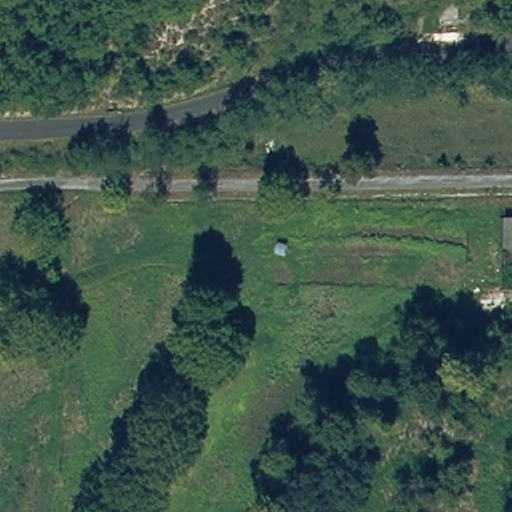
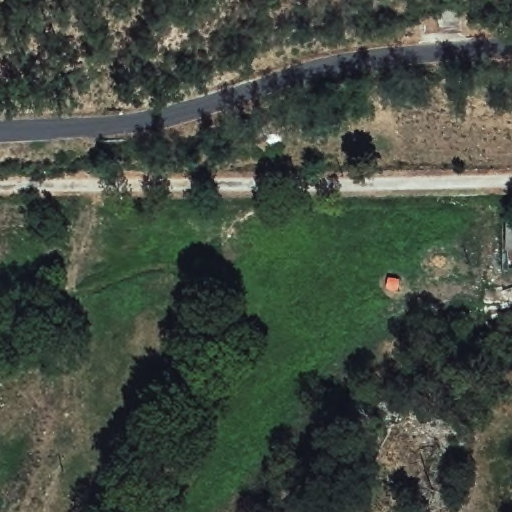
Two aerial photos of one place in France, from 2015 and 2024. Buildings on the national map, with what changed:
unchanged [(455,0),(467,1),(467,19),(444,19),(444,0),(455,0)]
unchanged [(512,249),(509,249),(507,218),(512,217),(512,249)]

